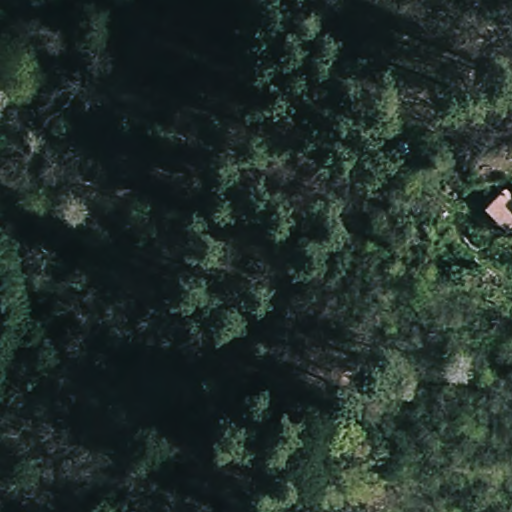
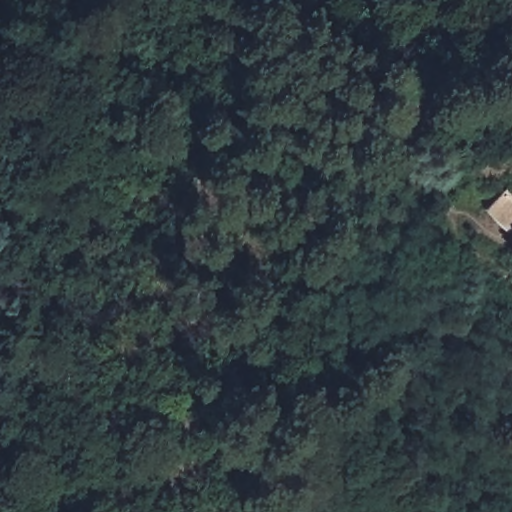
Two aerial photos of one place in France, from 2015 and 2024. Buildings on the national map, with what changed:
unchanged [(506,202),(512,207),(512,238),(511,239),(489,221),(506,202)]

